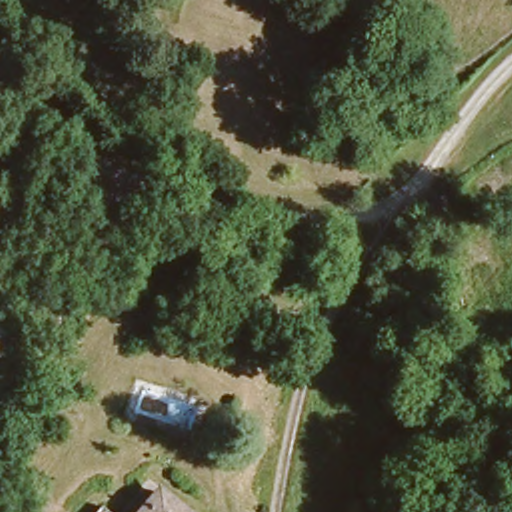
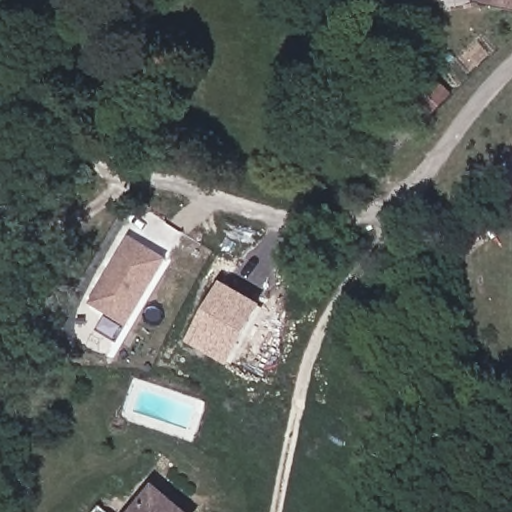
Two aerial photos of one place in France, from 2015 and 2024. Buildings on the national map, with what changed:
new [(484,0),(512,0),(512,9),(483,4),(484,0)]
new [(129,237),(165,259),(126,325),(90,303),(129,237)]
new [(216,284),(254,305),(223,360),(186,340),(216,284)]
unchanged [(197,510),(195,512),(126,512),(154,476),(197,510)]
unchanged [(105,512),(86,512),(93,503),(105,512)]

